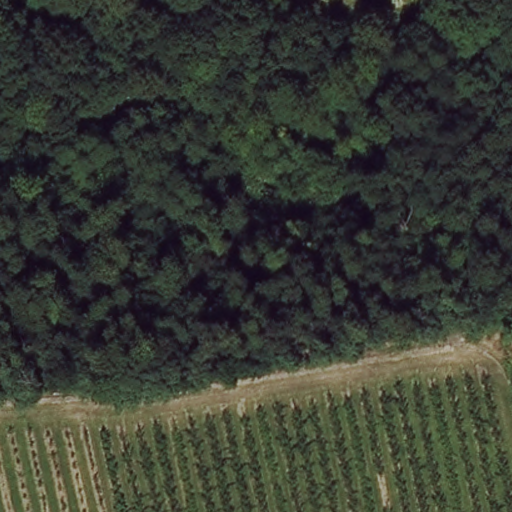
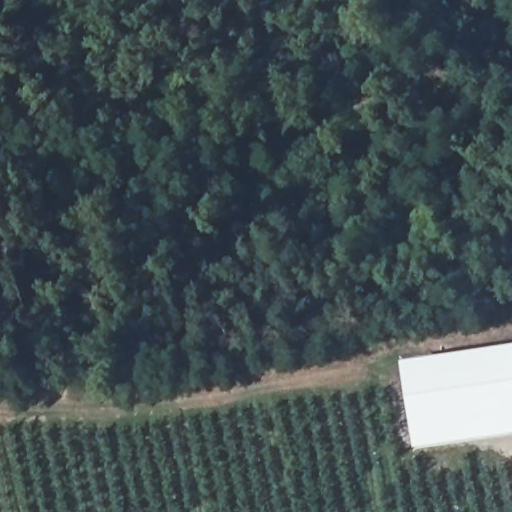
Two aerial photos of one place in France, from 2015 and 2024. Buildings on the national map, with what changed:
new [(405,373),(512,357),(512,437),(417,452),(405,373)]

